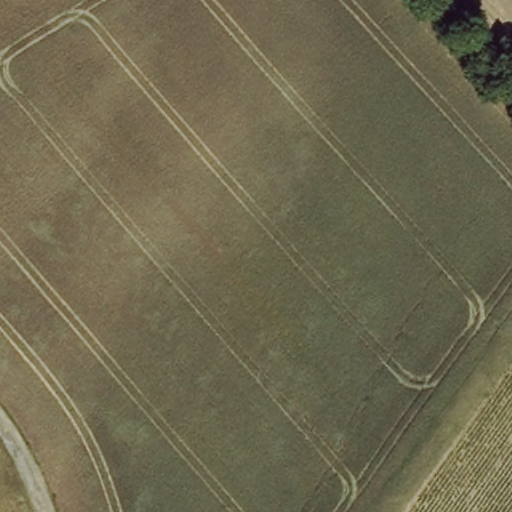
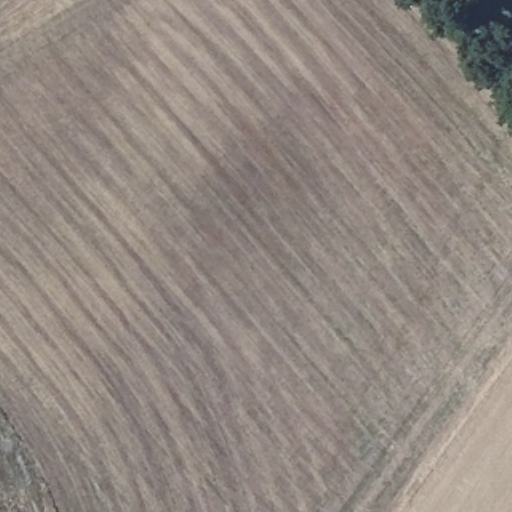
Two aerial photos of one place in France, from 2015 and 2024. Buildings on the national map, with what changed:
[]

